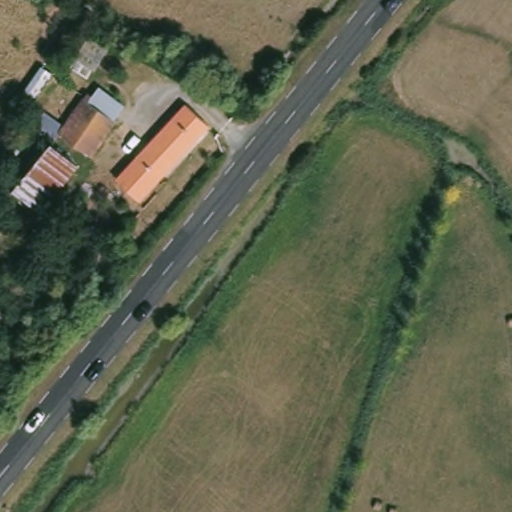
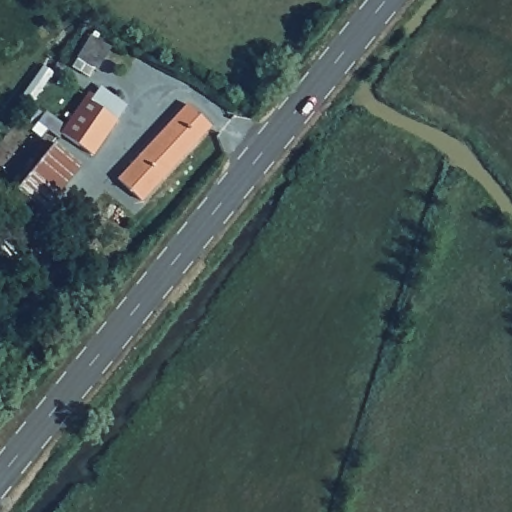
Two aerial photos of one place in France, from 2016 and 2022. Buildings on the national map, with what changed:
unchanged [(92,95),(97,99),(106,90),(125,106),(116,116),(127,125),(95,160),(62,130),(92,95)]
unchanged [(117,185),(181,112),(173,107),(183,96),(215,125),(145,207),(117,185)]
unchanged [(16,195),(56,146),(82,169),(47,211),(16,195)]

